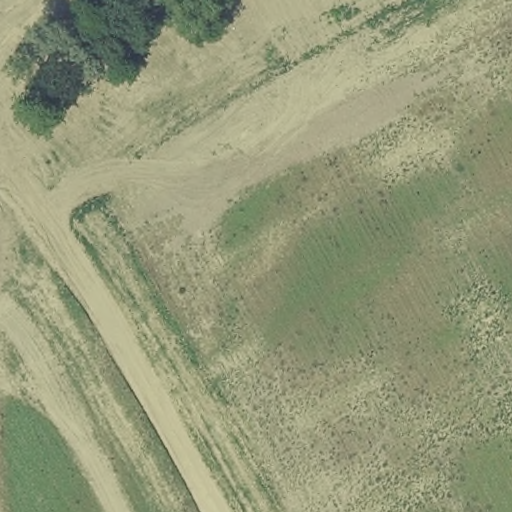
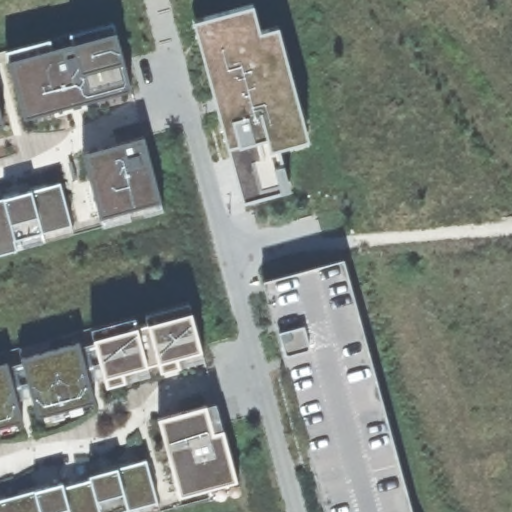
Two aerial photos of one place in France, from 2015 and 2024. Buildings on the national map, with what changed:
demolished [(334,8),(330,0),(345,0),(334,8)]
new [(252,3),(260,30),(277,25),(285,54),(292,82),(305,128),(305,129),(309,139),(284,146),(279,148),(290,190),(242,203),(220,123),(197,39),(192,20),(252,3)]
new [(112,22),(131,89),(87,101),(87,105),(72,109),(70,105),(24,118),(8,61),(0,63),(0,52),(112,22)]
new [(4,123),(0,124),(0,110),(4,123)]
new [(3,198),(2,194),(17,190),(19,194),(30,190),(30,186),(45,182),(47,186),(60,183),(72,225),(100,217),(82,153),(102,147),(102,143),(113,140),(115,144),(143,136),(163,210),(0,254),(0,198),(3,198)]
new [(412,512),(324,512),(262,281),(343,259),(412,512)]
new [(204,360),(160,372),(157,362),(147,365),(150,374),(107,386),(94,338),(79,342),(95,401),(92,403),(94,408),(70,415),(68,409),(64,410),(65,416),(51,420),(49,414),(37,417),(20,358),(7,361),(23,421),(10,425),(12,431),(0,433),(0,353),(189,302),(204,360)]
new [(4,494),(6,497),(18,494),(17,490),(49,482),(50,485),(62,482),(64,486),(74,484),(74,479),(100,472),(100,468),(132,459),(134,463),(146,460),(157,502),(179,496),(158,418),(215,403),(240,490),(156,512),(0,512),(0,495),(4,494)]

